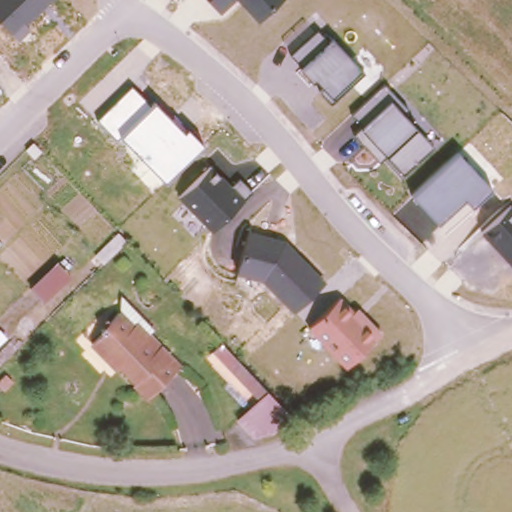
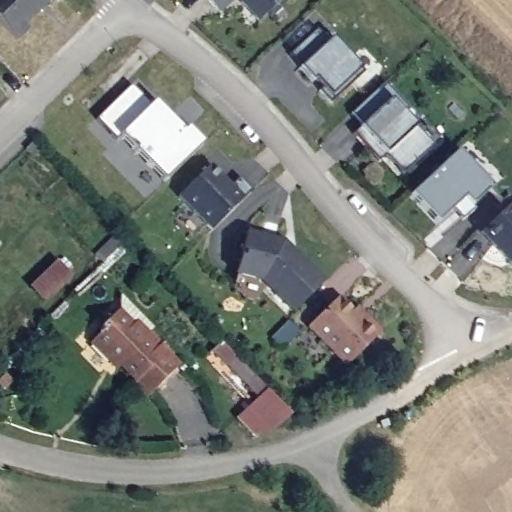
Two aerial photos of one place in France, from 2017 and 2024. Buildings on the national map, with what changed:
unchanged [(50,0),(25,25),(30,30),(19,41),(0,22),(0,0),(50,0)]
unchanged [(208,0),(237,0),(221,14),(208,0)]
unchanged [(237,0),(281,0),(258,22),(237,0)]
unchanged [(317,31),(330,43),(332,41),(360,69),(363,74),(331,104),(319,91),(322,86),(315,79),(312,81),(300,69),(290,55),(317,31)]
unchanged [(385,155),(379,161),(354,134),(360,128),(362,125),(352,115),(384,84),(407,108),(399,110),(415,128),(433,146),(402,174),(385,155)]
unchanged [(150,106),(154,103),(184,132),(187,129),(202,144),(164,181),(121,136),(117,140),(98,120),(131,87),(150,106)]
unchanged [(471,207),(464,200),(438,223),(412,195),(457,152),(490,188),(471,207)]
unchanged [(211,231),(177,198),(210,165),(233,186),(240,180),(250,192),(244,199),(211,231)]
unchanged [(512,207),(512,266),(481,233),(512,206),(512,207)]
unchanged [(285,240),(325,281),(292,314),(262,282),(237,275),(248,231),(285,240)]
unchanged [(345,368),(306,329),(340,297),(354,310),(357,307),(381,332),(345,368)]
unchanged [(80,352),(93,341),(90,337),(110,320),(114,310),(115,304),(133,324),(145,337),(142,341),(139,343),(169,374),(139,403),(109,373),(104,377),(99,371),(80,352)]
unchanged [(246,409),(252,403),(207,354),(214,347),(272,408),(274,411),(267,418),(260,424),(257,420),(246,409)]

